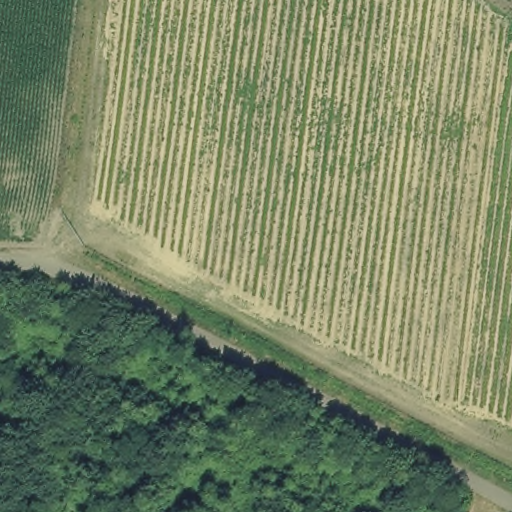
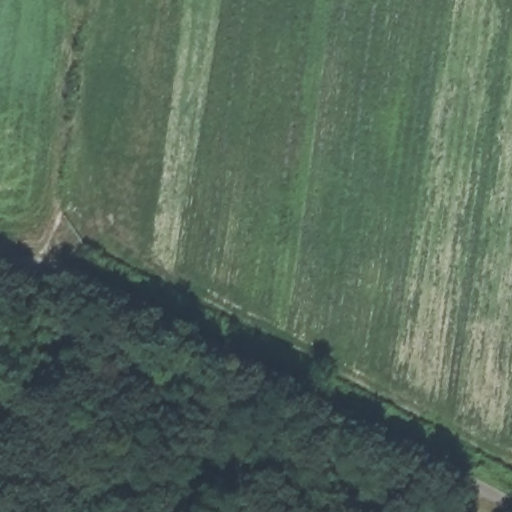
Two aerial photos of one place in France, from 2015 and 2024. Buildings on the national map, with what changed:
[]

